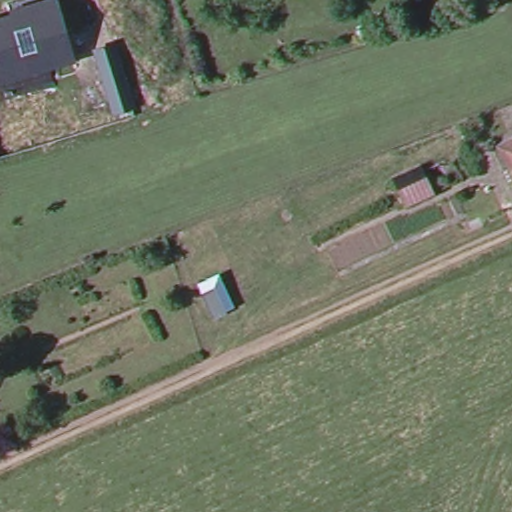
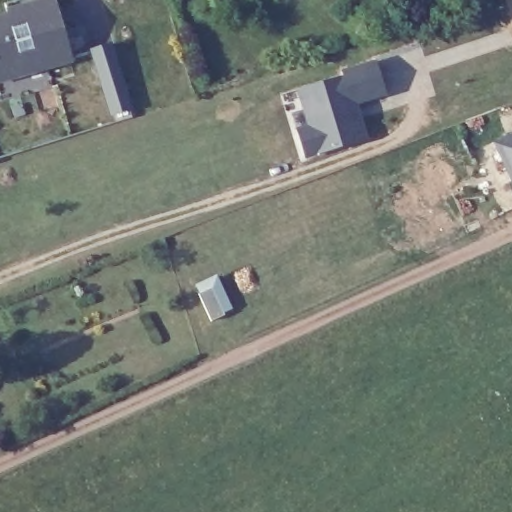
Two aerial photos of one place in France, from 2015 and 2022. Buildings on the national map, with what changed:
unchanged [(50,0),(55,0),(69,47),(22,61),(21,56),(0,61),(0,14),(50,0)]
unchanged [(94,49),(110,44),(130,106),(113,111),(94,49)]
new [(311,124),(300,87),(344,74),(343,69),(375,60),(385,92),(355,101),(366,137),(305,155),(297,128),(311,124)]
unchanged [(497,142),(512,135),(512,176),(497,142)]
unchanged [(397,189),(425,176),(433,192),(405,206),(397,189)]

